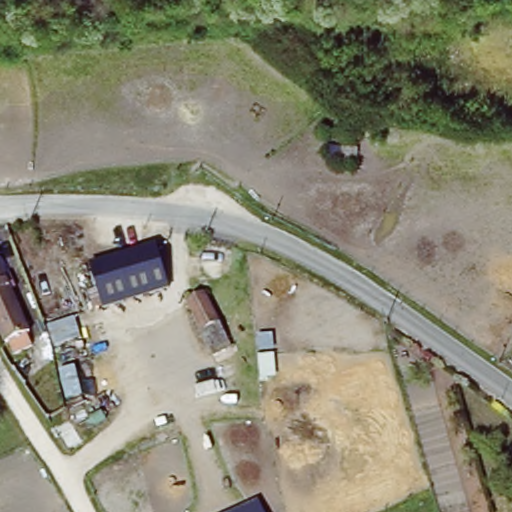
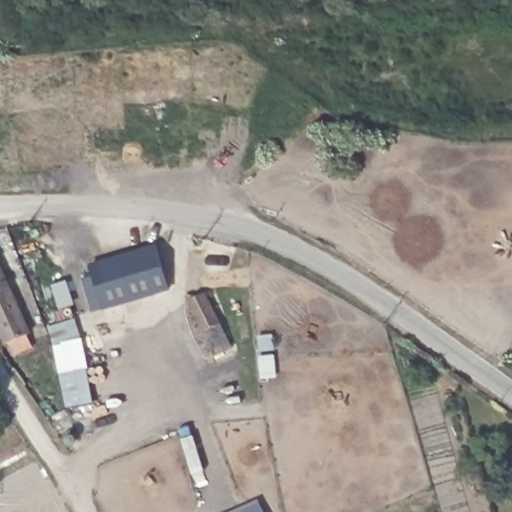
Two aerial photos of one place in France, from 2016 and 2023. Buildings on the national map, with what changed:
unchanged [(109,312),(97,268),(162,249),(175,293),(109,312)]
unchanged [(10,273),(16,287),(10,290),(30,332),(27,333),(32,346),(14,354),(9,342),(7,343),(0,329),(0,266),(5,276),(10,273)]
unchanged [(186,297),(204,288),(232,342),(214,352),(186,297)]
unchanged [(259,499),(265,512),(246,512),(244,506),(259,499)]
unchanged [(246,512),(230,512),(244,506),(246,512)]

